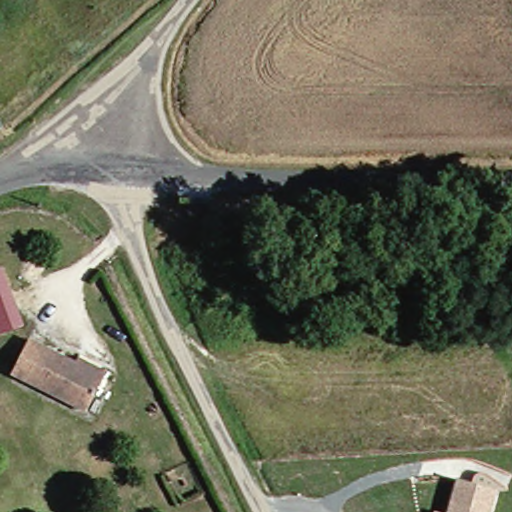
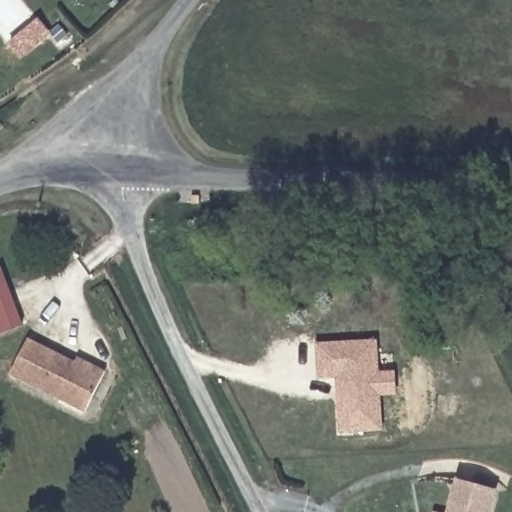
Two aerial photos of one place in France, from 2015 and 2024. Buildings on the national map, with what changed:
unchanged [(0,269),(9,266),(30,323),(1,335),(0,333),(0,269)]
unchanged [(14,378),(31,343),(79,365),(83,355),(112,370),(107,381),(90,416),(14,378)]
new [(381,345),(386,432),(346,435),(343,380),(325,381),(322,348),(381,345)]
new [(382,377),(400,376),(400,396),(385,397),(382,377)]
unchanged [(491,492),(486,512),(444,512),(452,481),(491,492)]

